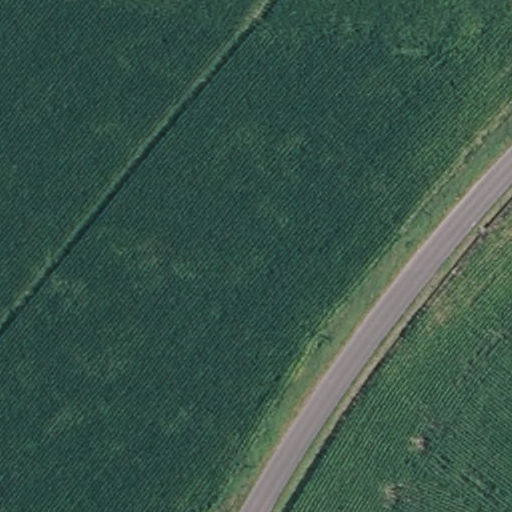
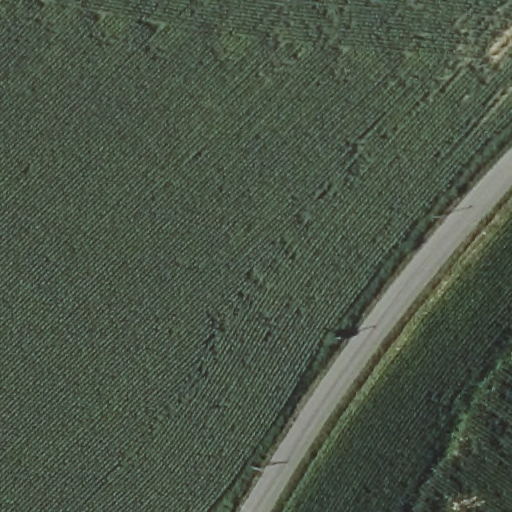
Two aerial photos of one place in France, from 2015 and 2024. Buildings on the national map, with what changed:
[]

